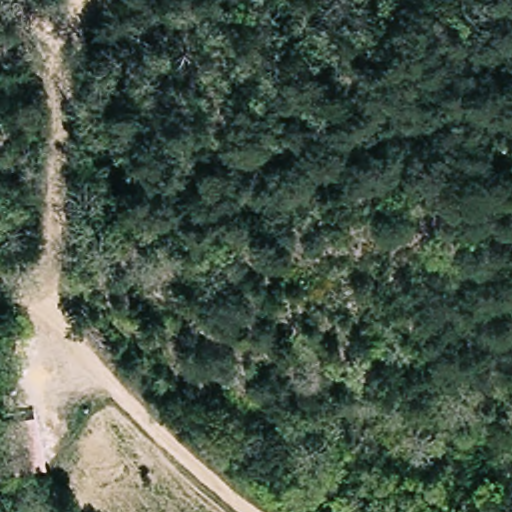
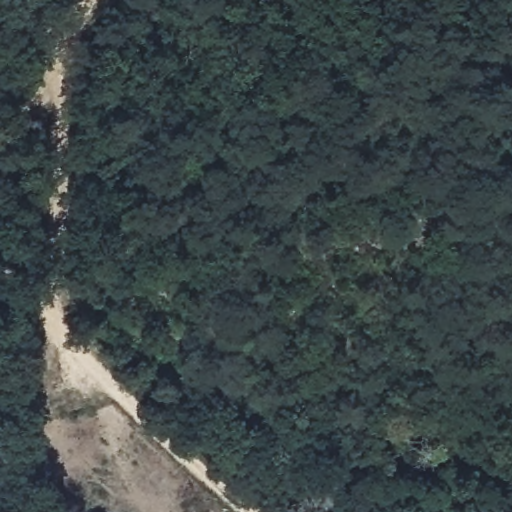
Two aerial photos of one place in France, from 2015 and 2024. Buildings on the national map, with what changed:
[]

